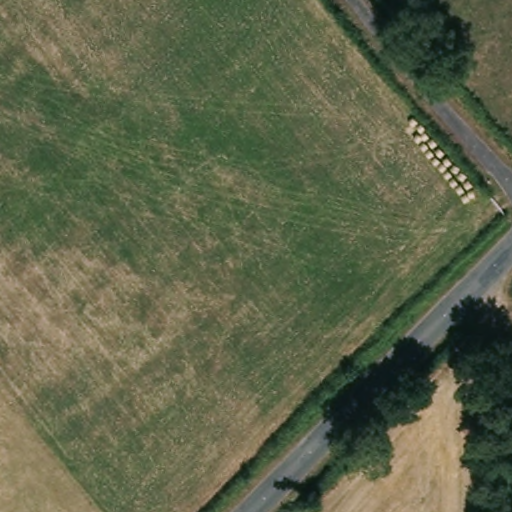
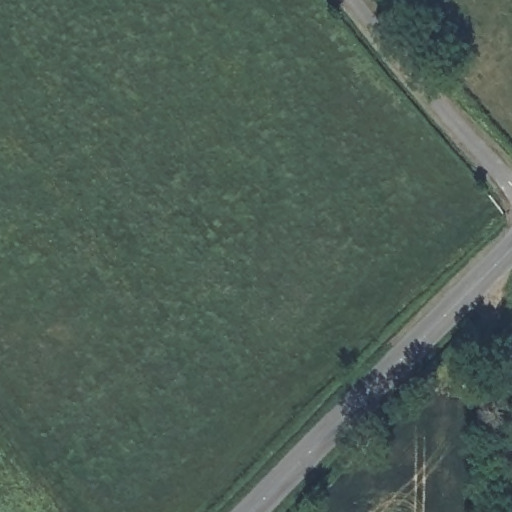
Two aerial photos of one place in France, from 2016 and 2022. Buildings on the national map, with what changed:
unchanged [(512,393),(507,337),(512,337),(512,393)]

